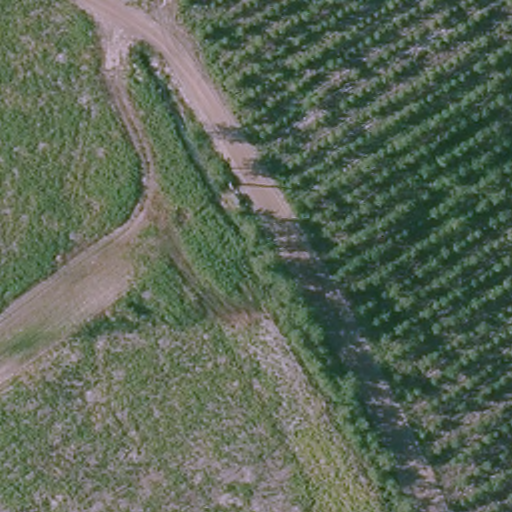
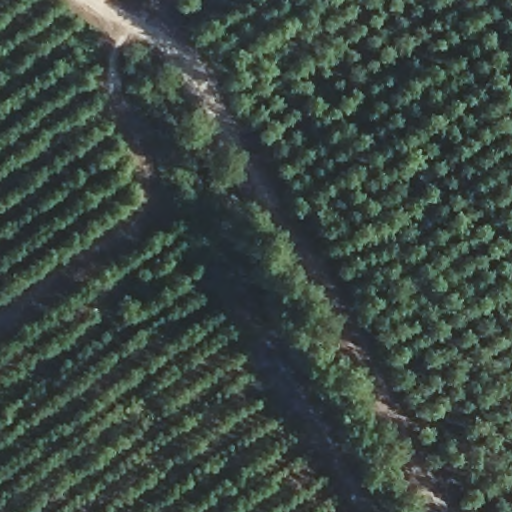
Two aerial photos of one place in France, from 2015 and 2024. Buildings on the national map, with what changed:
unchanged [(248,206),(240,211),(235,202),(244,198),(248,206)]

